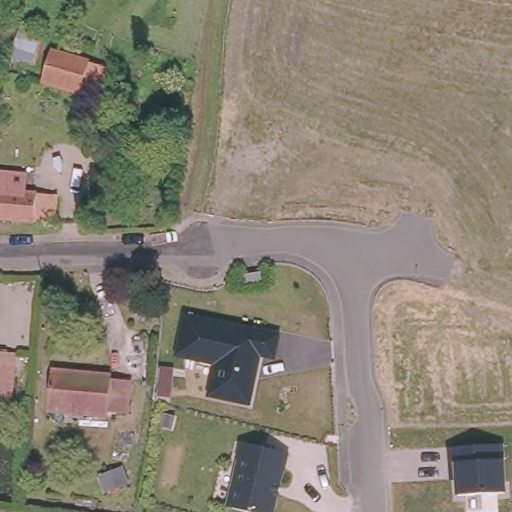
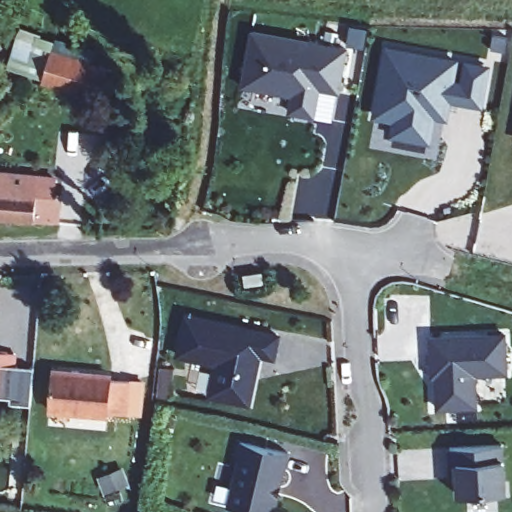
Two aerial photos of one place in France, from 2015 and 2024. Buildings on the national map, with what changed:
new [(91,49),(87,62),(51,52),(43,79),(7,68),(20,28),(91,49)]
new [(251,30),(345,47),(337,89),(317,86),(312,114),(289,110),(292,93),(241,84),(251,30)]
new [(386,47),(456,59),(453,81),(463,82),(467,60),(486,64),(480,101),(460,98),(460,94),(449,92),(445,114),(433,113),(429,138),(393,132),(396,118),(375,114),(386,47)]
unchanged [(87,62),(80,89),(43,79),(51,52),(87,62)]
unchanged [(26,188),(0,186),(0,169),(28,172),(26,188)]
unchanged [(58,191),(57,210),(52,210),(51,219),(36,217),(35,219),(0,216),(0,186),(53,191),(58,191)]
unchanged [(175,357),(183,312),(282,334),(276,361),(262,357),(251,407),(206,397),(212,365),(175,357)]
new [(506,371),(475,372),(476,405),(437,407),(435,375),(431,375),(430,353),(429,336),(504,332),(506,371)]
unchanged [(10,394),(0,393),(0,346),(13,347),(10,394)]
unchanged [(114,376),(114,380),(131,381),(128,415),(110,413),(110,416),(51,409),(55,370),(114,376)]
unchanged [(247,512),(226,507),(238,460),(236,460),(240,442),(289,455),(275,512),(247,512)]
unchanged [(503,445),(505,461),(506,492),(456,495),(455,480),(450,480),(448,449),(503,445)]

